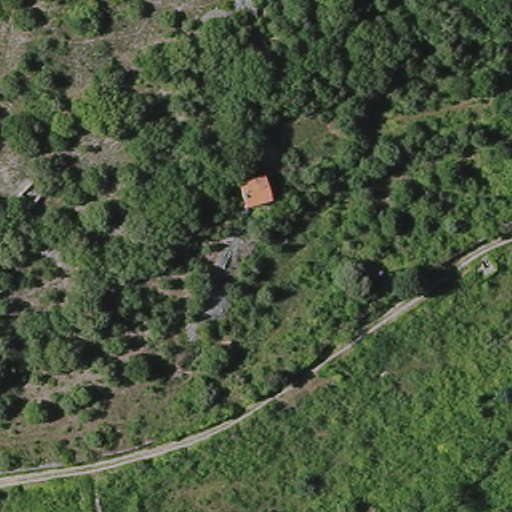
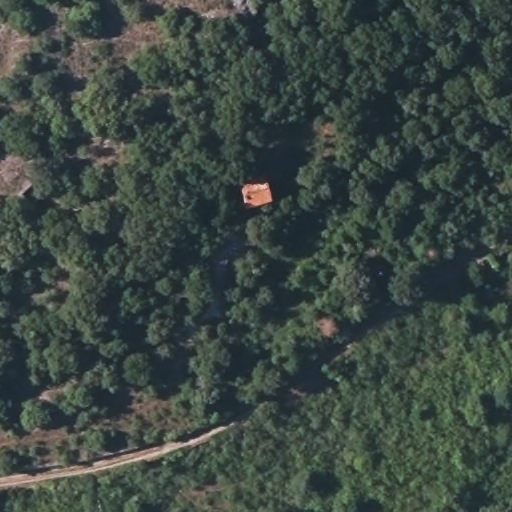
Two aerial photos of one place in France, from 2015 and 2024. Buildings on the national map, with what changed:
unchanged [(275,201),(246,208),(240,182),(269,176),(275,201)]
unchanged [(468,310),(449,322),(439,305),(458,293),(468,310)]

